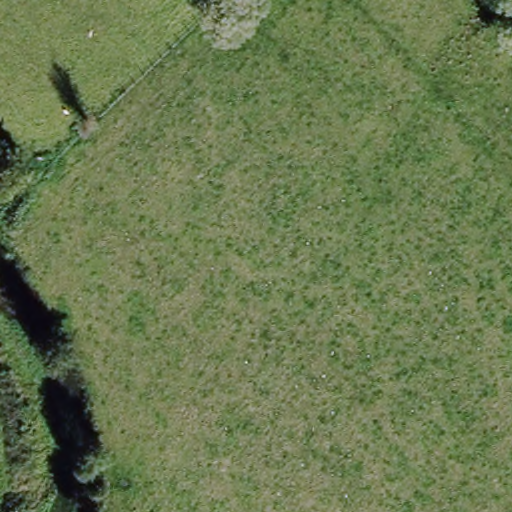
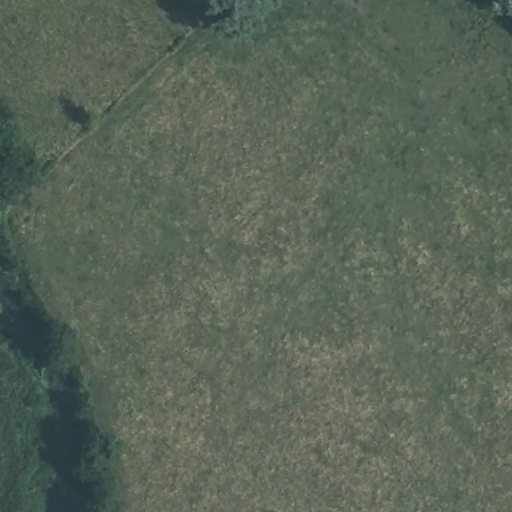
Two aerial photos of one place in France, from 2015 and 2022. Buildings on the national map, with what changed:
[]

